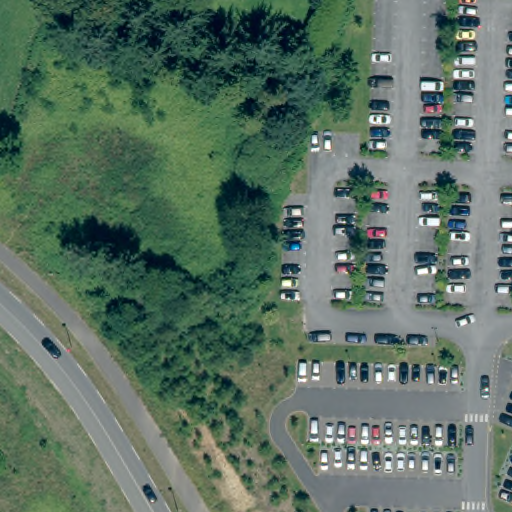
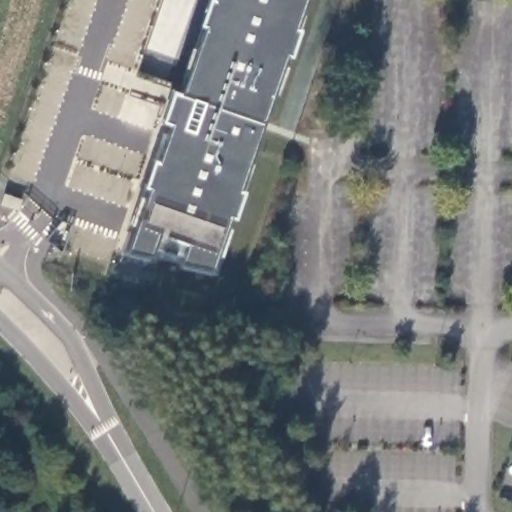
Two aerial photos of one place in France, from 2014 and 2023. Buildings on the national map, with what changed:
new [(180,262),(184,249),(154,238),(148,254),(126,249),(149,187),(143,184),(153,156),(159,158),(171,124),(161,119),(172,88),(182,90),(206,25),(200,23),(208,0),(303,0),(210,268),(180,262)]

